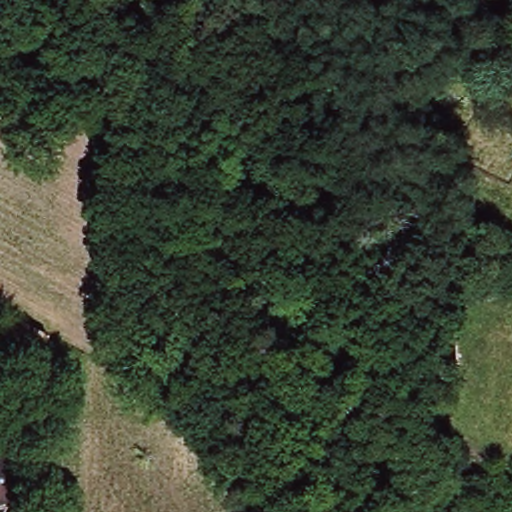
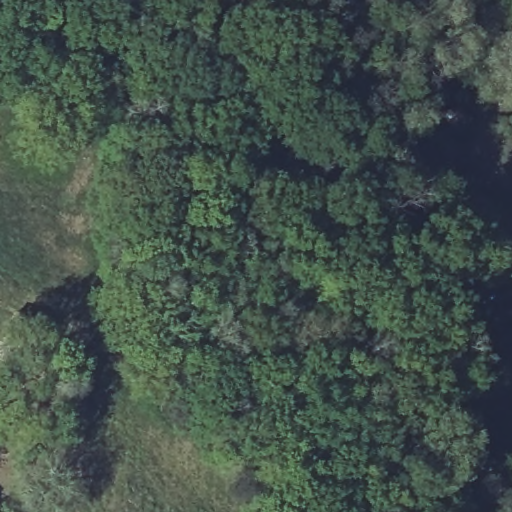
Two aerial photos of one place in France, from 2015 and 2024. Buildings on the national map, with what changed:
unchanged [(46,336),(32,358),(0,341),(0,340),(13,318),(46,336)]
unchanged [(458,367),(421,368),(420,331),(457,331),(458,367)]
unchanged [(22,492),(21,497),(19,501),(15,504),(11,507),(6,507),(4,507),(2,512),(0,512),(0,470),(4,470),(9,471),(13,472),(17,476),(20,479),(22,483),(22,488),(22,492)]

